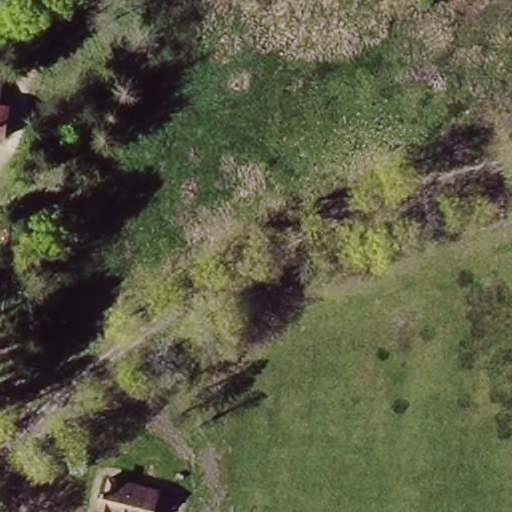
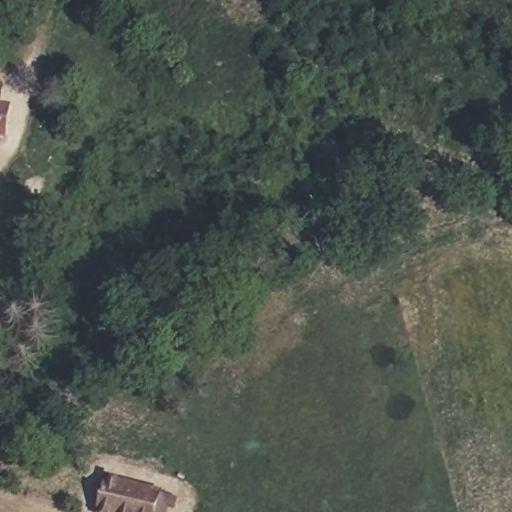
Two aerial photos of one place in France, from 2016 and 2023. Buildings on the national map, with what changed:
unchanged [(10,105),(8,144),(0,142),(0,104),(10,105)]
unchanged [(105,471),(163,487),(155,512),(98,512),(105,471)]

